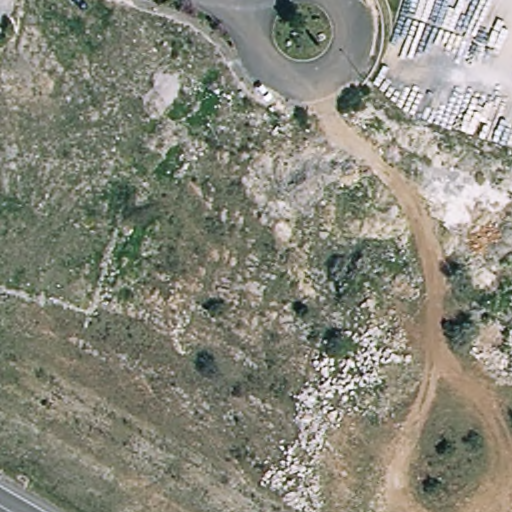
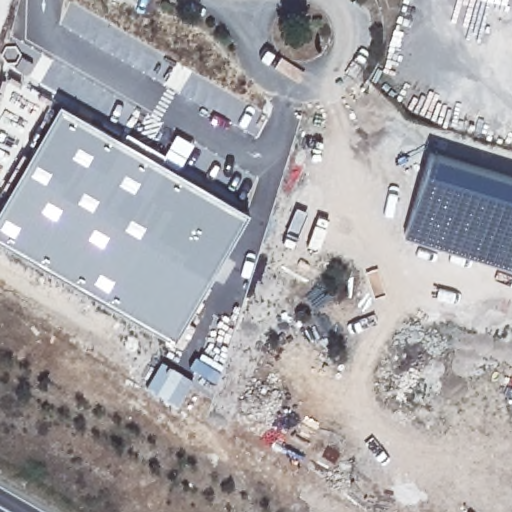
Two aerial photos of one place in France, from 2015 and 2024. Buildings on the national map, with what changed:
new [(173,338),(0,239),(0,202),(59,101),(249,211),(173,338)]
new [(512,267),(401,233),(430,147),(512,174),(512,267)]

